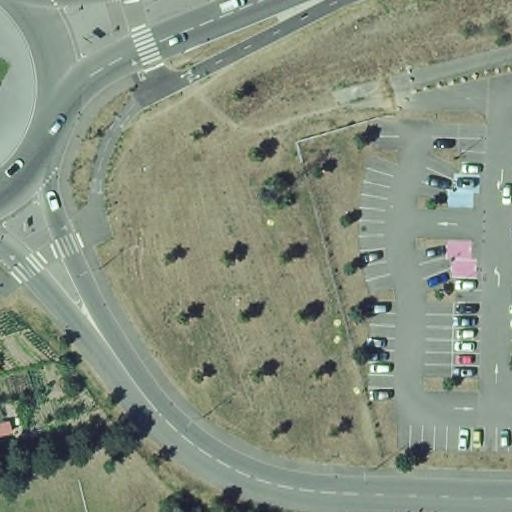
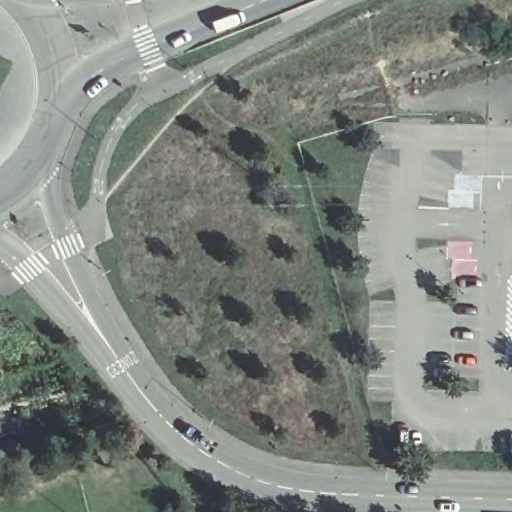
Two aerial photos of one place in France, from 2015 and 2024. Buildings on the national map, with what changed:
[]

